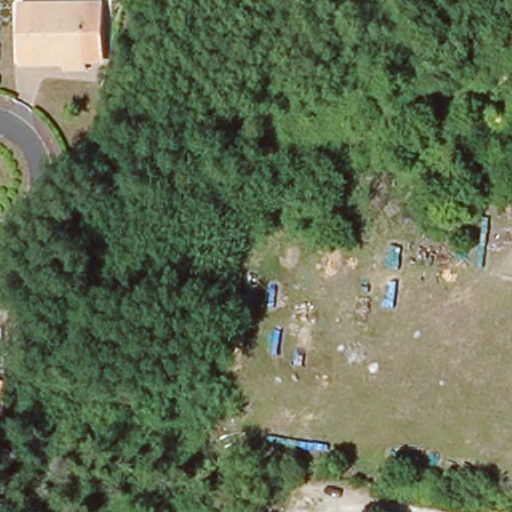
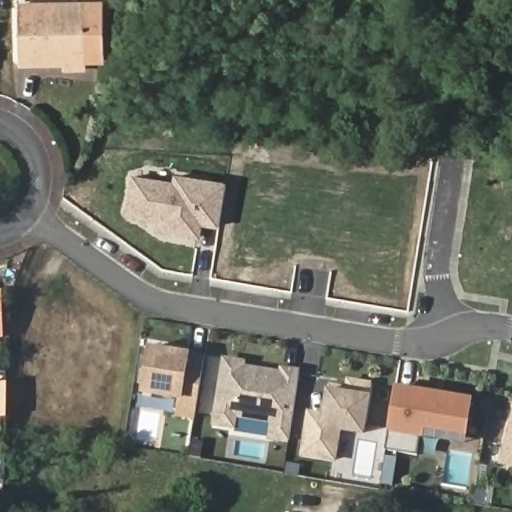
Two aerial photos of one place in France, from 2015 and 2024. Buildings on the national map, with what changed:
unchanged [(66,72),(65,62),(18,62),(18,6),(84,5),(84,6),(102,6),(103,55),(84,57),(84,61),(85,71),(66,72)]
new [(202,225),(199,239),(155,232),(157,222),(124,216),(131,174),(172,180),(174,173),(227,182),(219,228),(202,225)]
new [(177,416),(180,397),(143,390),(150,348),(206,357),(196,419),(177,416)]
new [(271,435),(274,419),(236,413),(234,425),(215,422),(226,358),(244,361),(243,367),(299,376),(289,438),(271,435)]
unchanged [(15,381),(16,418),(0,419),(0,382),(15,381)]
new [(325,415),(329,391),(330,386),(343,388),(348,389),(349,381),(372,384),(364,434),(341,430),(335,460),(303,455),(310,413),(325,415)]
new [(421,426),(417,455),(383,450),(390,412),(406,415),(409,391),(470,400),(465,432),(421,426)]
new [(512,418),(512,466),(500,462),(512,418)]
unchanged [(17,454),(19,491),(0,492),(0,455),(17,454)]

